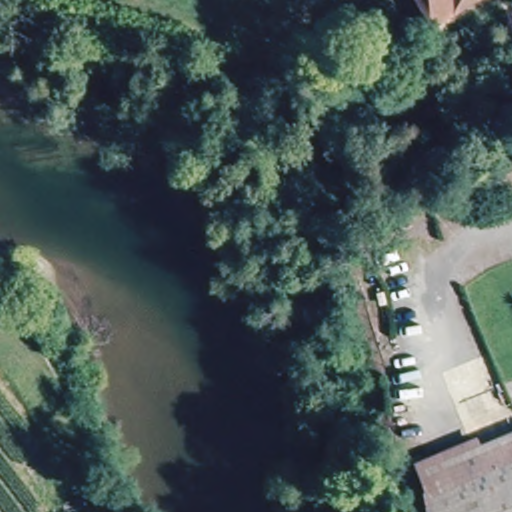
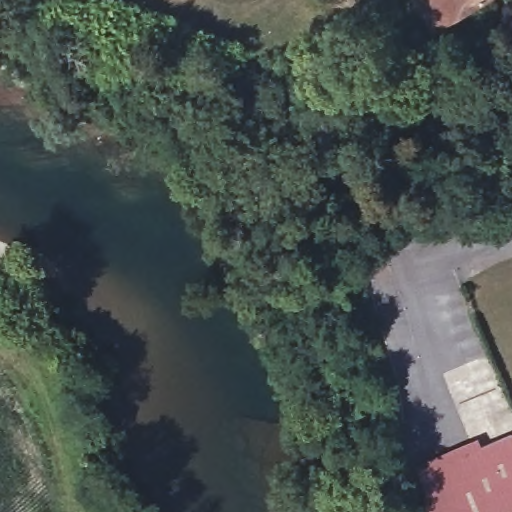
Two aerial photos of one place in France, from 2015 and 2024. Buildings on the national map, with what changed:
unchanged [(431,26),(417,0),(482,0),(431,26)]
unchanged [(421,468),(418,461),(474,438),(477,445),(512,431),(512,512),(433,512),(429,488),(421,468)]

